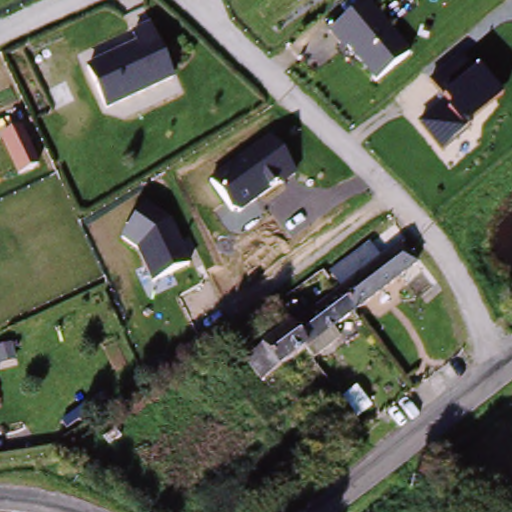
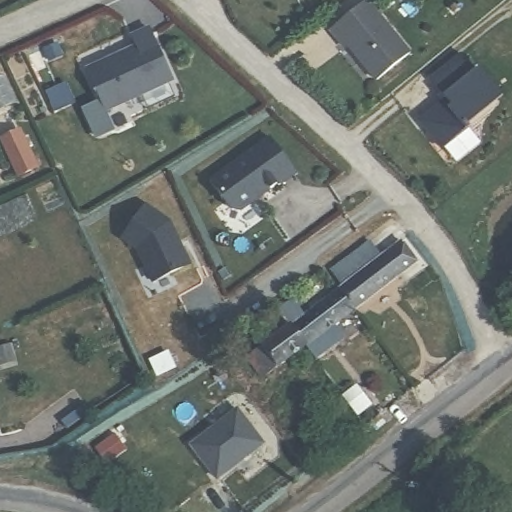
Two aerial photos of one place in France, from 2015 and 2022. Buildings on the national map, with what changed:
unchanged [(363,0),(370,0),(410,52),(374,80),(331,27),(363,0)]
unchanged [(176,81),(103,115),(83,69),(134,47),(130,35),(151,26),(176,81)]
unchanged [(446,97),(429,79),(461,54),(477,72),(479,69),(504,97),(440,152),(416,122),(446,97)]
unchanged [(39,169),(20,179),(1,137),(20,127),(39,169)]
unchanged [(209,178),(271,132),(296,171),(236,212),(209,178)]
unchanged [(136,247),(123,237),(148,202),(171,217),(192,262),(153,282),(136,247)]
unchanged [(340,286),(330,271),(372,240),(382,252),(400,242),(413,258),(404,266),(356,307),(340,286)]
unchanged [(356,307),(335,323),(348,337),(316,361),(302,347),(288,327),(303,316),(340,286),(356,307)]
unchanged [(288,327),(302,347),(263,377),(247,358),(288,327)]
new [(265,442),(217,480),(190,445),(236,407),(265,442)]

